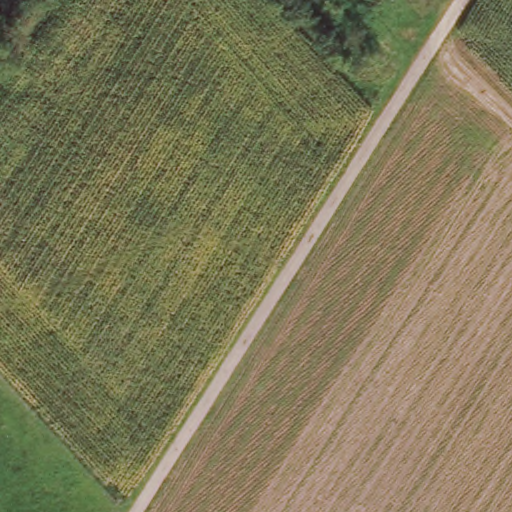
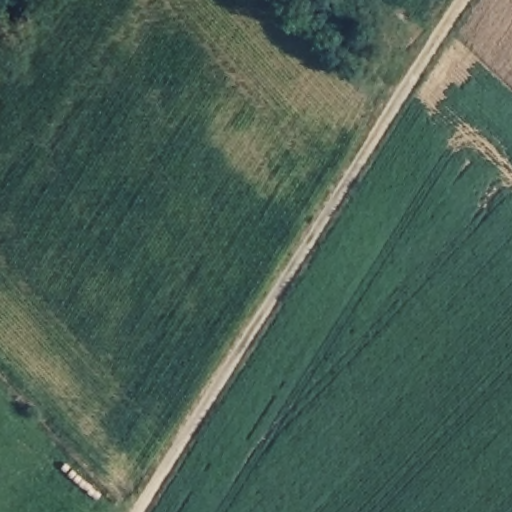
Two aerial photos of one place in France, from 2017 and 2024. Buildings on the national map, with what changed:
unchanged [(66,460),(76,473),(67,486),(54,472),(66,460)]

